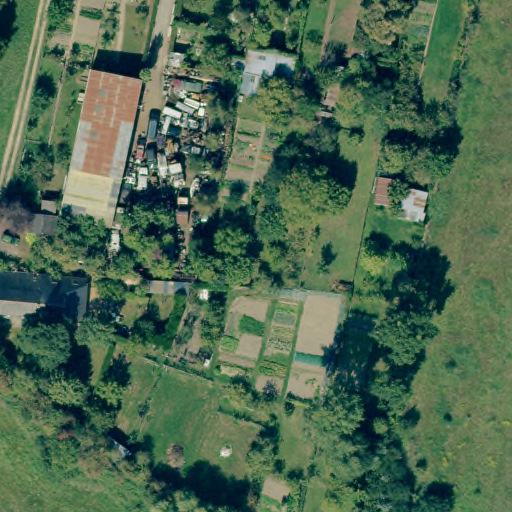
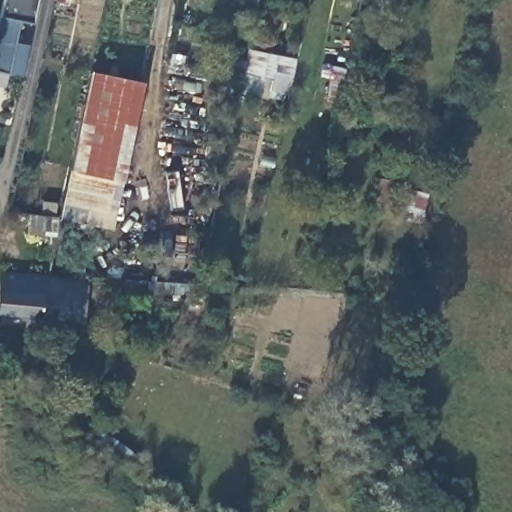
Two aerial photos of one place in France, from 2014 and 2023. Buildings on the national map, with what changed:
new [(22,21),(17,43),(21,43),(20,47),(30,49),(24,76),(0,71),(0,26),(5,0),(40,0),(35,24),(22,21)]
unchanged [(269,91),(271,83),(263,81),(262,91),(242,87),(250,53),(292,61),(285,95),(269,91)]
unchanged [(342,91),(348,68),(359,70),(354,93),(342,91)]
unchanged [(64,194),(84,96),(133,106),(113,203),(64,194)]
unchanged [(18,257),(16,269),(0,265),(0,256),(1,254),(18,257)]
unchanged [(46,273),(41,311),(0,306),(0,281),(2,268),(46,273)]

